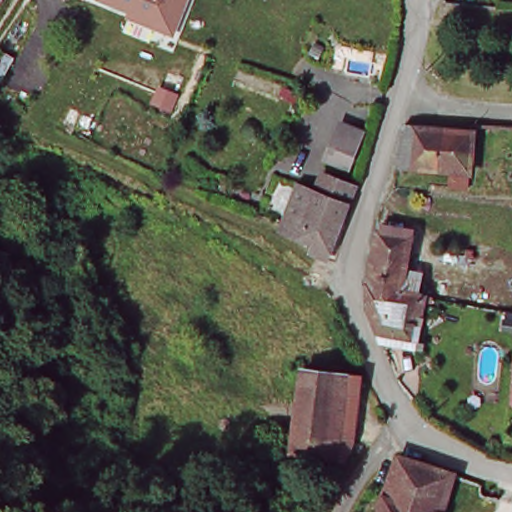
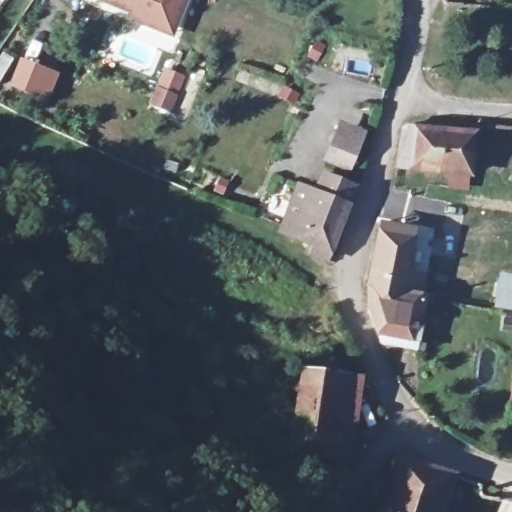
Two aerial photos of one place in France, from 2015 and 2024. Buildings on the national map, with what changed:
unchanged [(98,0),(185,0),(174,31),(98,0)]
new [(19,57),(60,72),(49,101),(8,85),(19,57)]
unchanged [(362,141),(351,167),(326,155),(337,130),(362,141)]
unchanged [(402,162),(405,134),(474,137),(472,174),(400,170),(402,162)]
unchanged [(317,192),(324,176),(357,190),(332,250),(327,261),(312,256),(317,246),(320,240),(287,224),(302,185),(317,192)]
unchanged [(368,280),(370,261),(374,242),(380,221),(409,229),(401,266),(415,269),(411,289),(368,280)]
unchanged [(416,290),(410,329),(377,323),(365,299),(368,280),(411,289),(416,290)]
unchanged [(512,332),(512,406),(502,403),(512,332)]
unchanged [(285,457),(294,364),(363,376),(344,469),(285,457)]
unchanged [(455,480),(445,512),(387,512),(402,460),(455,480)]

